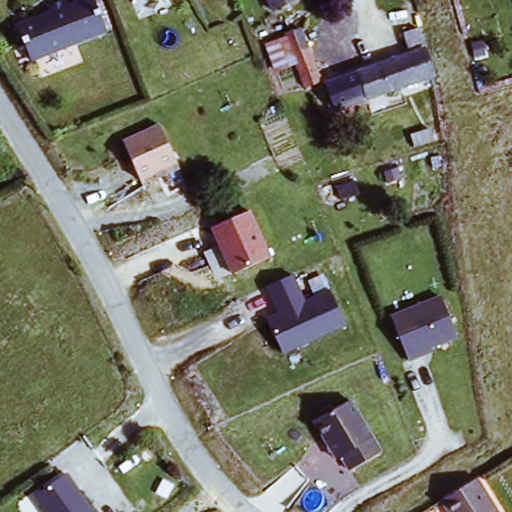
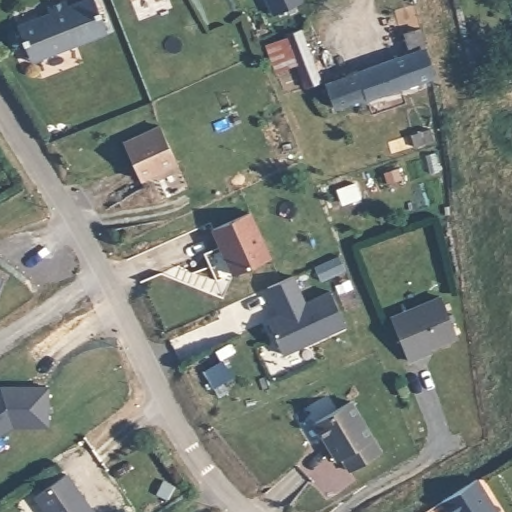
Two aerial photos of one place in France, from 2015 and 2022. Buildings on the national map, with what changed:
unchanged [(44,14),(45,16),(56,12),(53,3),(62,0),(73,0),(73,2),(79,0),(101,0),(112,28),(41,55),(37,56),(30,39),(23,22),(44,14)]
unchanged [(269,0),(287,0),(273,7),(269,0)]
unchanged [(301,25),(321,77),(306,83),(296,58),(276,66),(266,41),(286,33),(285,30),(301,25)]
unchanged [(431,62),(368,95),(366,91),(334,102),(326,79),(412,50),(404,29),(419,25),(431,62)]
unchanged [(141,176),(124,137),(159,121),(176,158),(179,164),(158,174),(155,169),(141,176)]
unchanged [(271,259),(231,275),(211,228),(251,210),(271,259)]
new [(0,291),(0,277),(5,280),(0,291)]
unchanged [(306,303),(329,292),(346,329),(284,355),(268,318),(275,315),(266,291),(294,277),(306,303)]
unchanged [(442,297),(459,344),(408,363),(391,317),(442,297)]
new [(16,385),(52,385),(52,424),(16,424),(0,435),(0,388),(4,385),(9,385),(16,385)]
unchanged [(382,453),(345,473),(315,423),(351,401),(382,453)]
unchanged [(91,512),(39,512),(30,500),(64,474),(91,512)]
unchanged [(443,496),(477,474),(500,512),(452,512),(443,496)]

